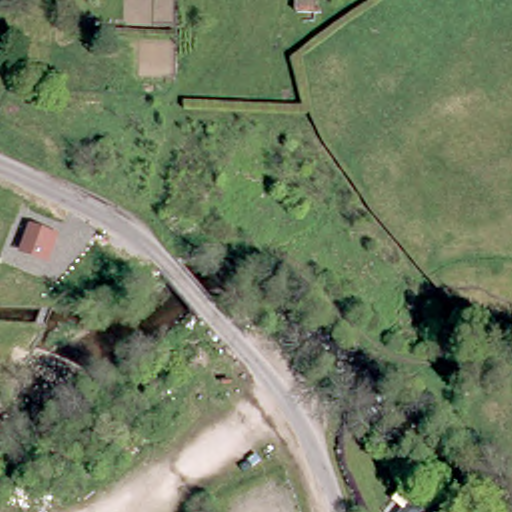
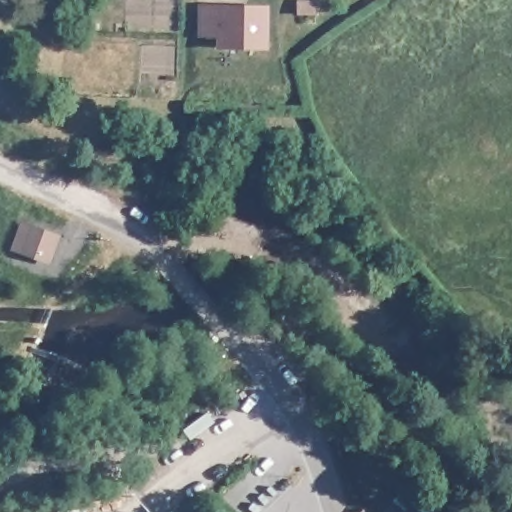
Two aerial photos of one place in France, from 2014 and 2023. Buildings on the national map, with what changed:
new [(267,5),(267,48),(215,48),(215,36),(197,36),(197,4),(267,5)]
new [(20,220),(60,235),(50,263),(9,249),(20,220)]

